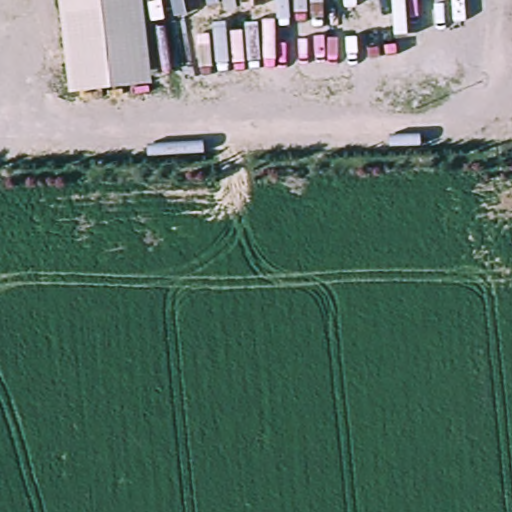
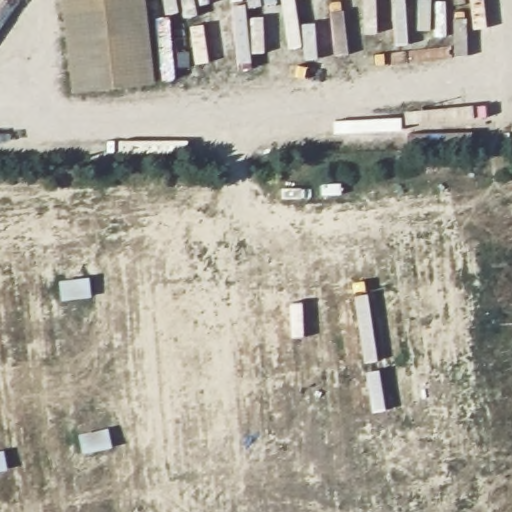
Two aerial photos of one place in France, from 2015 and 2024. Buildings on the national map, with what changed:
unchanged [(64,0),(151,0),(160,87),(74,96),(64,0)]

